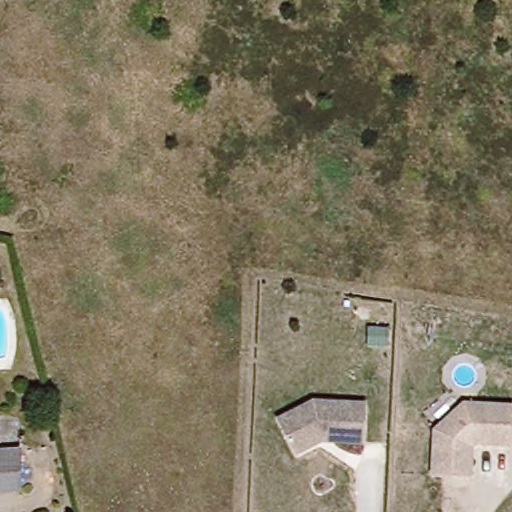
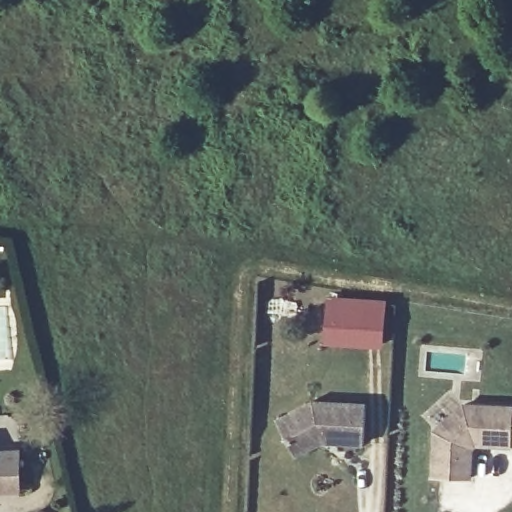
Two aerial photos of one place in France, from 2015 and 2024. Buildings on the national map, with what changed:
new [(327,296),(385,299),(383,347),(325,345),(327,296)]
demolished [(367,330),(389,330),(388,353),(367,352),(367,330)]
unchanged [(363,402),(361,441),(319,440),(308,445),(305,446),(292,453),(275,418),(300,406),(307,402),(310,400),(363,402)]
unchanged [(462,402),(512,406),(510,443),(473,442),(470,445),(468,477),(430,474),(433,428),(462,402)]
new [(510,443),(512,406),(512,444),(510,443)]
unchanged [(0,453),(13,453),(14,495),(0,495),(0,453)]

